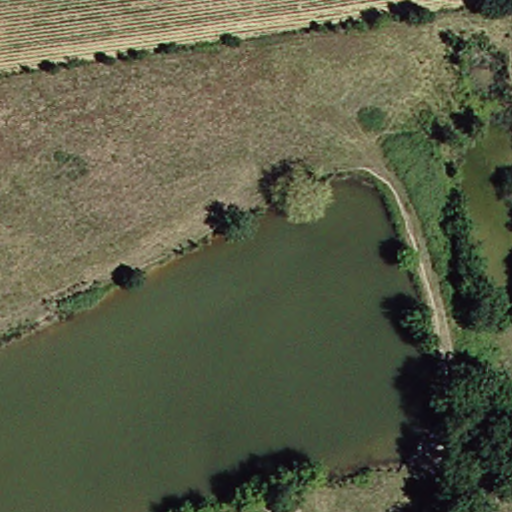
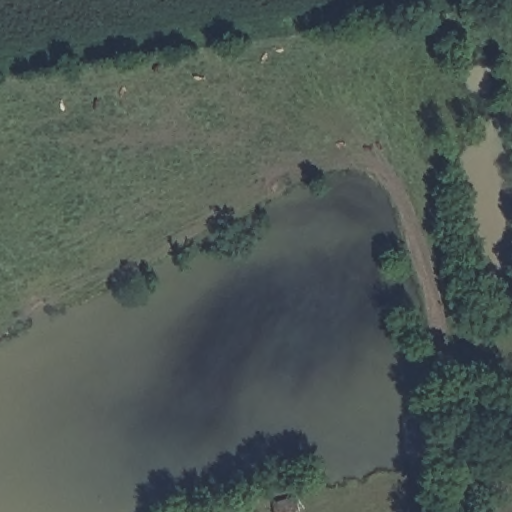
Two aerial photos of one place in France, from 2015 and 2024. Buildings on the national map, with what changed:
unchanged [(297,497),(301,512),(272,512),(270,503),(297,497)]

